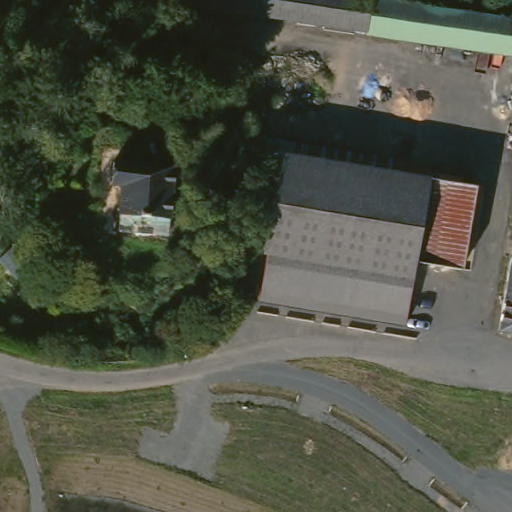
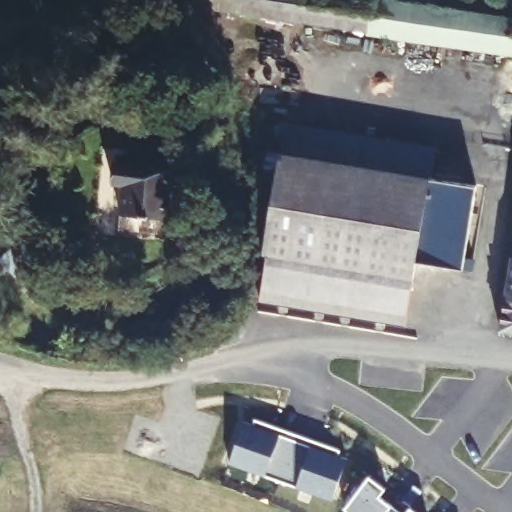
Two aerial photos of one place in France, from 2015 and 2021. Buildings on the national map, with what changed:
unchanged [(256,17),(171,5),(172,0),(258,0),(256,17)]
unchanged [(371,35),(256,17),(258,0),(357,0),(394,6),(443,14),(444,9),(512,19),(512,56),(417,42),(371,35)]
unchanged [(298,313),(299,310),(259,302),(284,127),(439,150),(436,181),(477,192),(457,275),(413,267),(397,332),(298,313)]
unchanged [(113,166),(173,168),(169,221),(167,224),(167,229),(152,229),(150,239),(118,237),(122,191),(119,190),(111,189),(113,166)]
unchanged [(512,260),(512,301),(506,300),(512,260)]
unchanged [(512,301),(512,336),(500,335),(506,300),(512,301)]
new [(254,425),(256,420),(338,450),(336,454),(346,457),(331,502),(229,466),(244,422),(254,425)]
new [(380,498),(400,512),(348,512),(347,511),(369,477),(387,488),(380,498)]
new [(415,512),(407,512),(410,508),(415,512)]

